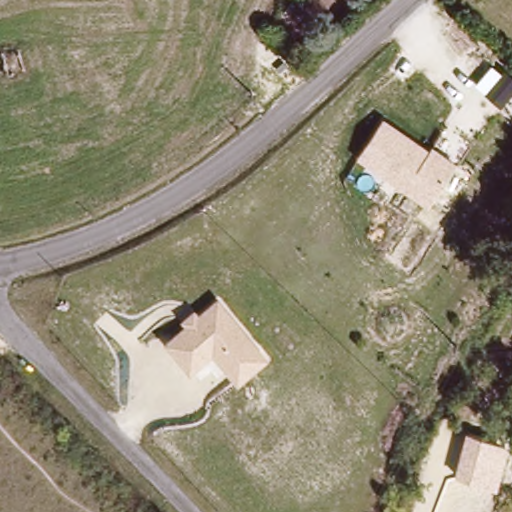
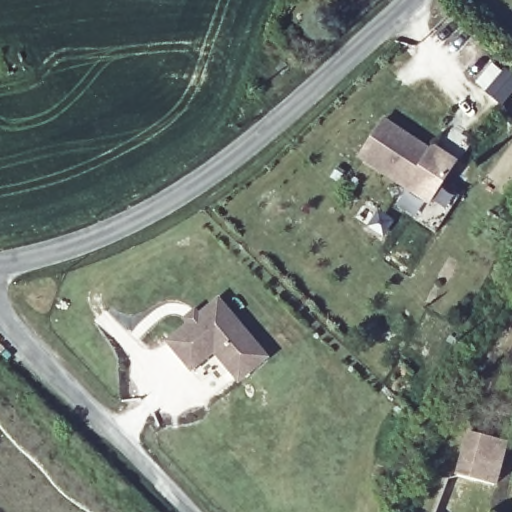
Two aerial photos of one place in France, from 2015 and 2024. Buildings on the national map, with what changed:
unchanged [(363,157),(384,123),(430,152),(434,146),(457,160),(430,202),(363,157)]
unchanged [(215,355),(192,375),(165,342),(186,325),(182,319),(197,307),(201,312),(221,295),(272,358),(239,385),(215,355)]
unchanged [(498,485),(456,475),(467,433),(508,443),(498,485)]

